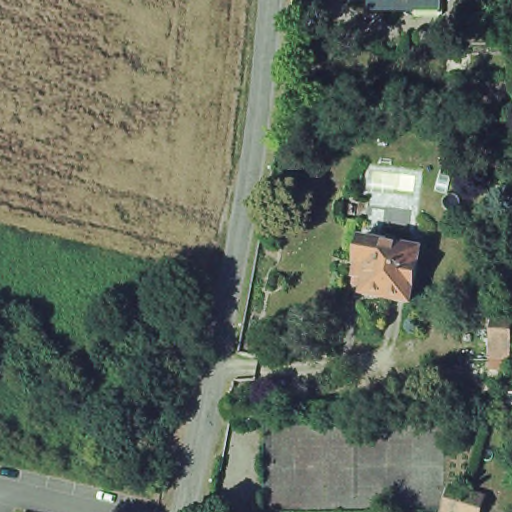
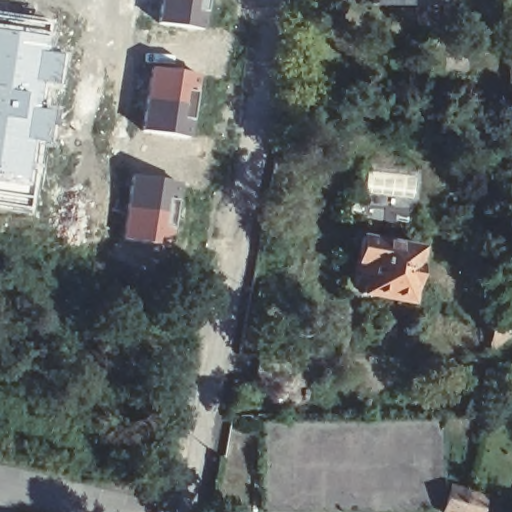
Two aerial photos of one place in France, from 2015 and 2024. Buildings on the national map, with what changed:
new [(161,0),(208,0),(203,30),(158,23),(161,0)]
unchanged [(439,3),(413,3),(412,15),(394,15),(394,3),(368,3),(368,0),(439,0),(439,3)]
new [(47,51),(61,52),(56,89),(42,86),(38,108),(50,109),(44,145),(27,209),(0,206),(0,12),(52,20),(47,51)]
new [(150,65),(200,74),(190,139),(141,131),(150,65)]
unchanged [(509,71),(512,71),(512,94),(510,94),(509,71)]
new [(132,174),(179,181),(170,246),(122,240),(132,174)]
unchanged [(405,242),(404,248),(422,252),(411,307),(362,297),(366,280),(355,278),(363,240),(381,243),(382,238),(405,242)]
unchanged [(444,512),(452,487),(470,492),(488,498),(484,512),(444,512)]

